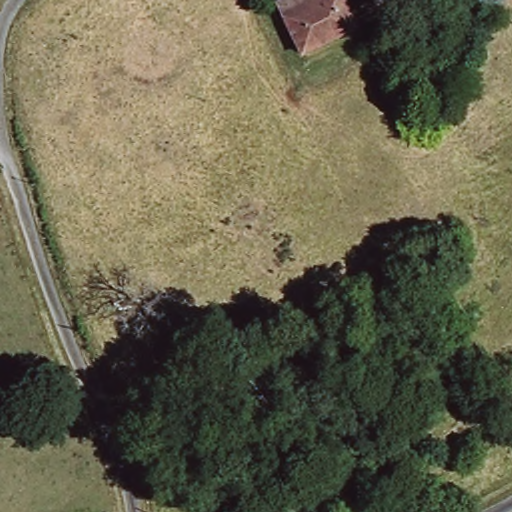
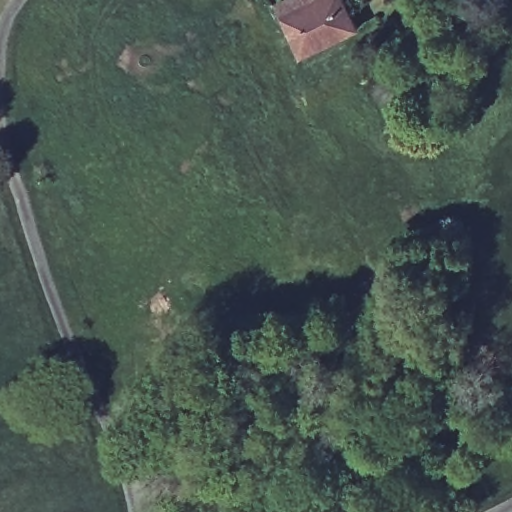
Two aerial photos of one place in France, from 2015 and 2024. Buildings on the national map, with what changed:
unchanged [(302,56),(283,15),(276,0),(342,0),(356,31),(302,56)]

